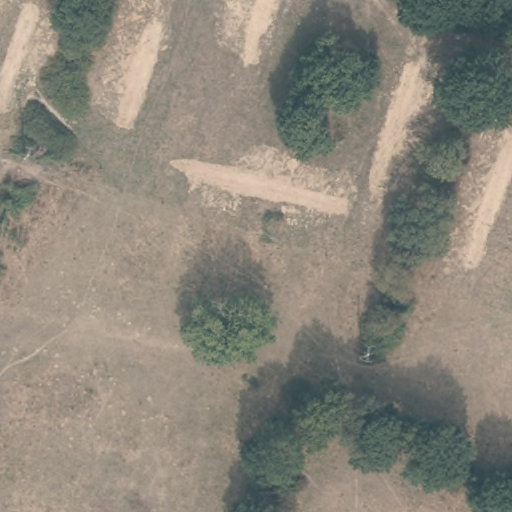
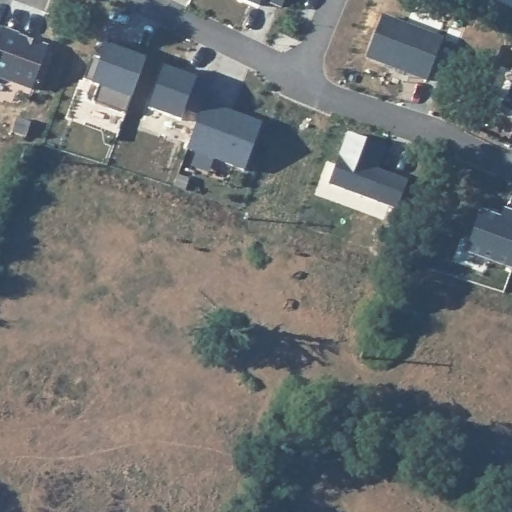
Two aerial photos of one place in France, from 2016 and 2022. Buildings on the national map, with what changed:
unchanged [(242,0),(261,0),(258,7),(242,0)]
unchanged [(281,4),(273,0),(283,0),(281,4)]
new [(382,16),(443,40),(427,81),(366,57),(382,16)]
new [(2,29),(0,34),(0,28),(2,29)]
new [(2,29),(18,35),(18,36),(47,47),(32,89),(0,77),(0,34),(2,29)]
new [(100,61),(105,45),(116,49),(118,43),(130,47),(147,53),(125,114),(93,102),(99,85),(83,80),(91,58),(100,61)]
new [(164,67),(211,84),(204,102),(199,116),(184,110),(181,121),(148,109),(164,67)]
new [(512,113),(503,109),(512,85),(512,113)]
new [(204,102),(221,108),(228,110),(262,123),(245,171),(187,150),(199,116),(204,102)]
new [(348,133),(385,147),(376,173),(386,177),(387,173),(408,180),(397,209),(329,184),(348,133)]
new [(511,223),(512,220),(512,268),(466,252),(481,212),(511,223)]

